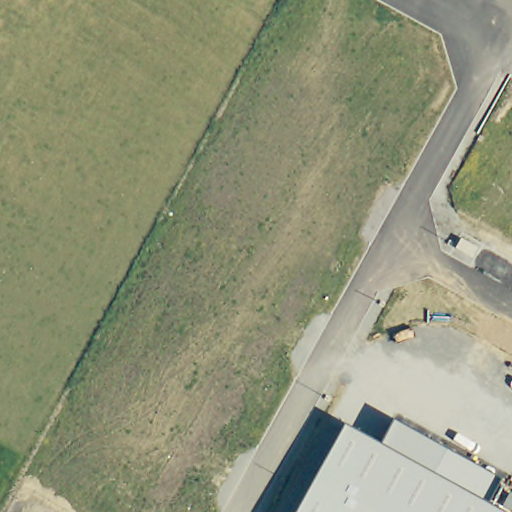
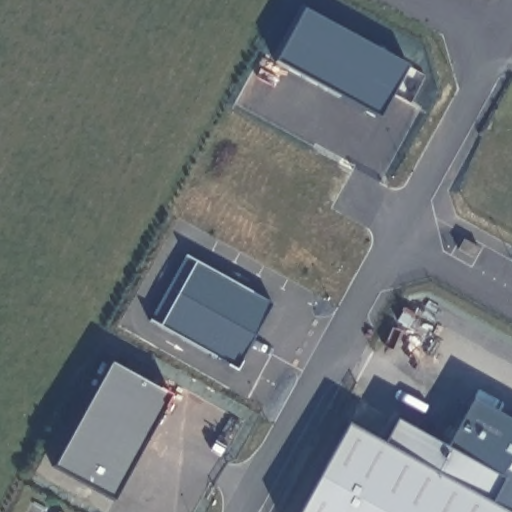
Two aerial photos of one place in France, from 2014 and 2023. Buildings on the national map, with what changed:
new [(304,10),(410,67),(381,120),(275,62),(304,10)]
new [(237,369),(149,320),(185,255),(271,304),(237,369)]
new [(114,499),(54,466),(111,362),(171,395),(114,499)]
unchanged [(347,428),(382,446),(395,423),(501,481),(489,505),(502,512),(299,512),(347,428)]

